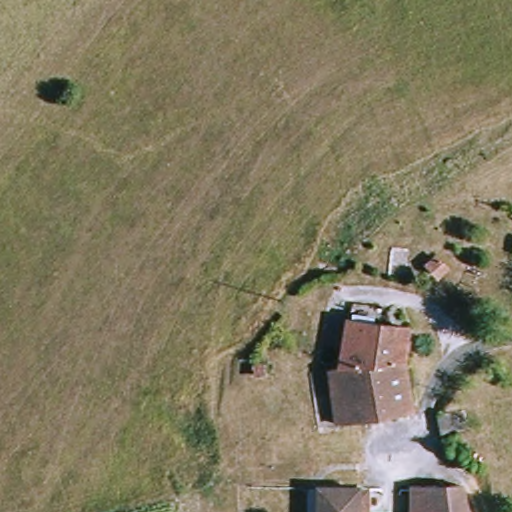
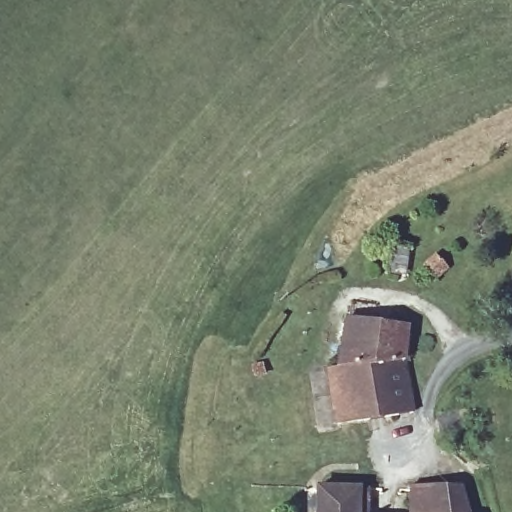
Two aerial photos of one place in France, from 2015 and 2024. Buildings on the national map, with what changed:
unchanged [(418,414),(393,419),(385,367),(339,370),(350,317),(411,326),(410,353),(412,376),(418,414)]
unchanged [(339,370),(385,367),(393,419),(343,425),(329,370),(339,370)]
unchanged [(435,412),(463,410),(465,429),(436,431),(435,412)]
unchanged [(412,485),(462,485),(470,512),(412,512),(412,485)]
unchanged [(319,487),(357,488),(356,512),(318,512),(319,487)]

